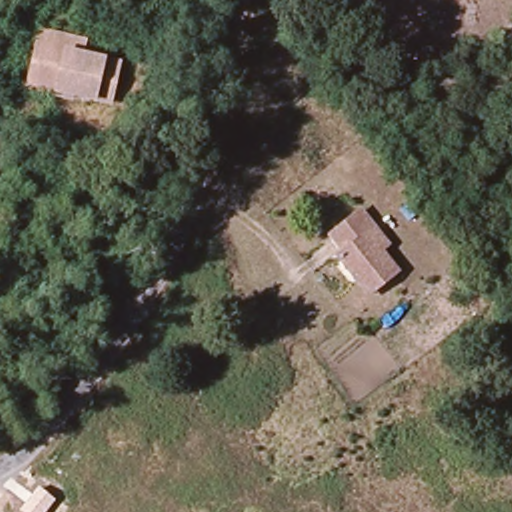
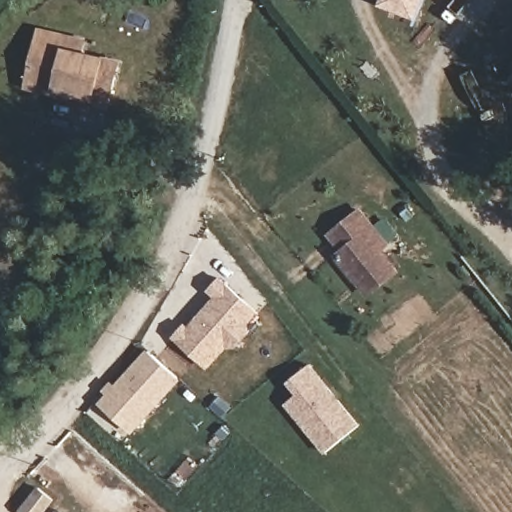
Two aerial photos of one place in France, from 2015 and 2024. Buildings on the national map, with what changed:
new [(379,0),(423,0),(416,20),(377,6),(379,0)]
unchanged [(26,91),(27,82),(33,47),(35,33),(81,40),(80,54),(115,59),(108,100),(68,93),(67,99),(26,91)]
unchanged [(369,294),(337,257),(343,251),(330,236),(360,211),(374,228),(387,243),(379,250),(396,271),(369,294)]
demolished [(452,274),(438,287),(425,274),(441,261),(452,274)]
new [(231,347),(209,370),(169,338),(184,323),(188,327),(214,298),(207,292),(219,278),(259,312),(246,329),(250,333),(235,350),(231,347)]
new [(146,351),(181,382),(133,434),(99,403),(146,351)]
new [(302,396),(291,384),(311,366),(334,391),(335,397),(340,402),(342,400),(364,424),(332,453),(289,407),(302,396)]
unchanged [(22,512),(20,510),(39,487),(55,500),(45,512),(22,512)]

